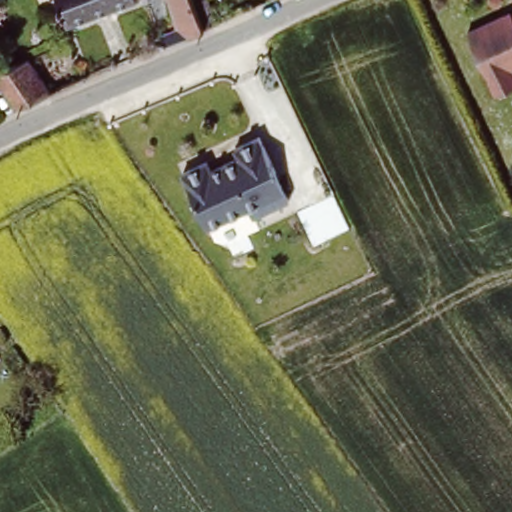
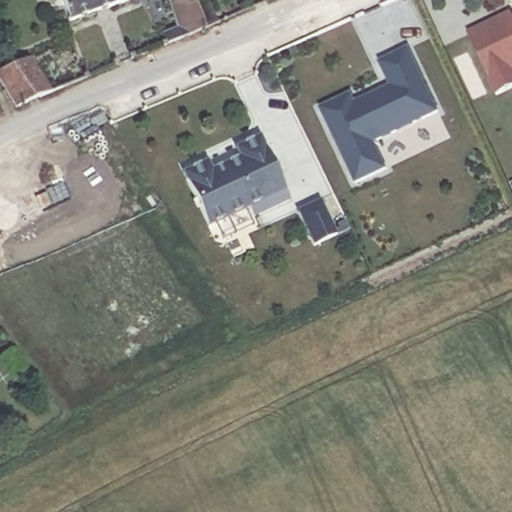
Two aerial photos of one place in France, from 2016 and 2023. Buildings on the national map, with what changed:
unchanged [(64,24),(55,0),(125,0),(64,24)]
unchanged [(201,29),(162,46),(158,35),(172,28),(162,0),(190,0),(201,29)]
unchanged [(507,79),(512,90),(512,92),(490,103),(462,41),(497,23),(500,29),(512,23),(512,76),(507,79)]
new [(350,91),(354,100),(389,85),(378,59),(409,46),(438,112),(373,143),(385,169),(355,182),(320,107),(350,91)]
unchanged [(69,78),(73,83),(12,109),(0,91),(0,71),(26,60),(39,82),(51,77),(55,84),(69,78)]
unchanged [(285,194),(250,212),(247,206),(207,226),(180,172),(205,160),(210,169),(237,156),(233,147),(257,135),(285,194)]

